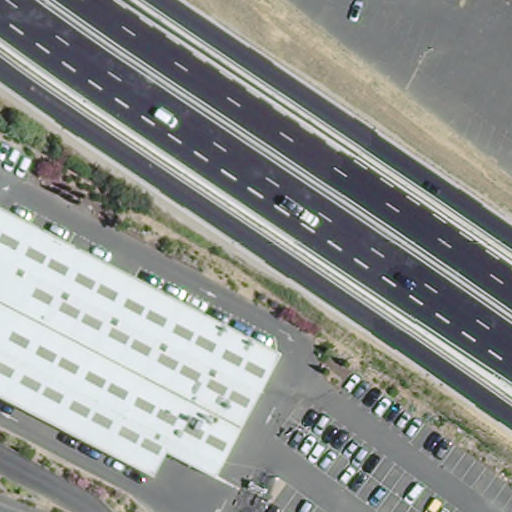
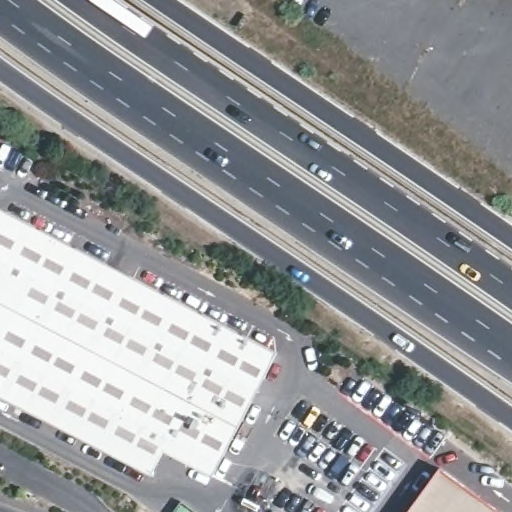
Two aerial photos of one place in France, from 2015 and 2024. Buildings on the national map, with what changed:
unchanged [(163,456),(150,480),(0,401),(0,212),(276,357),(264,381),(211,481),(163,456)]
new [(440,474),(493,512),(412,512),(440,474)]

